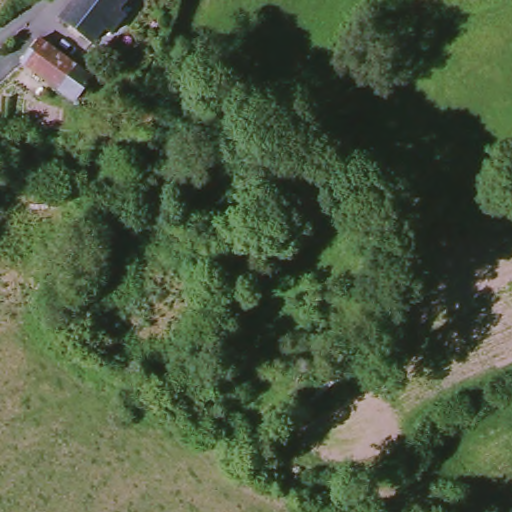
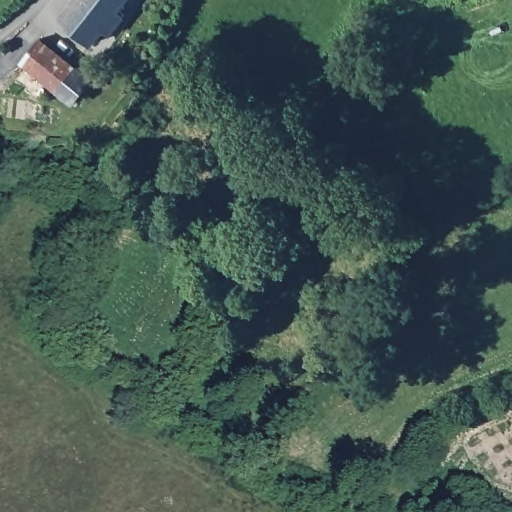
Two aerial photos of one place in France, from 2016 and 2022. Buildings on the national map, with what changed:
unchanged [(126,10),(110,31),(101,25),(89,41),(63,20),(77,0),(123,0),(121,3),(126,10)]
unchanged [(49,42),(96,76),(78,102),(29,70),(33,64),(49,42)]

